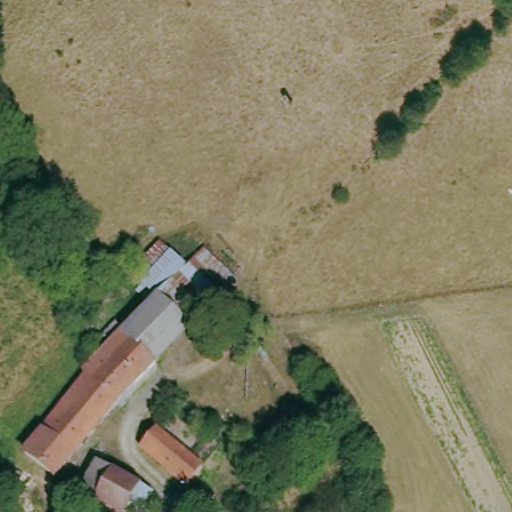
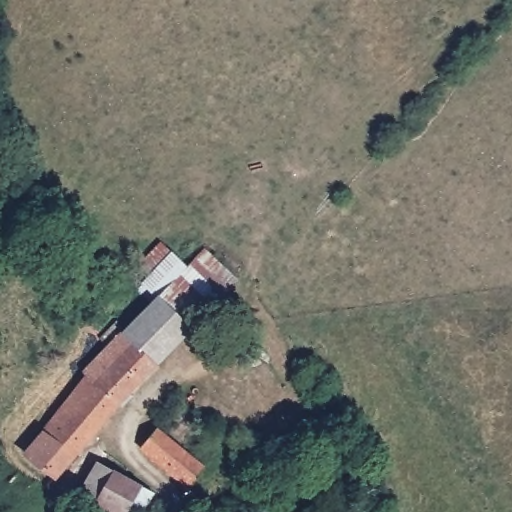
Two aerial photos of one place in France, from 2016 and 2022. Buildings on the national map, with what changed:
unchanged [(182,333),(53,475),(18,447),(37,428),(80,372),(77,370),(118,327),(150,296),(137,283),(142,276),(133,264),(155,238),(170,251),(180,263),(201,249),(232,275),(182,333)]
unchanged [(197,469),(181,488),(135,445),(152,427),(197,469)]
unchanged [(132,508),(120,501),(113,512),(110,512),(72,492),(90,460),(142,491),(132,508)]

